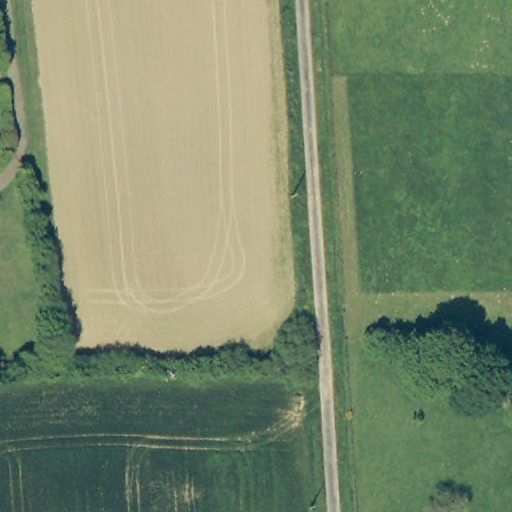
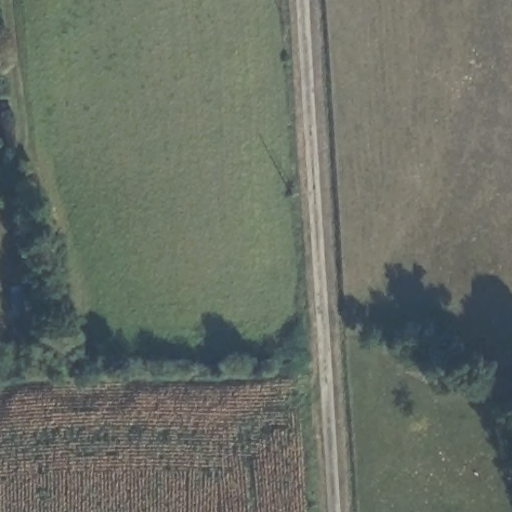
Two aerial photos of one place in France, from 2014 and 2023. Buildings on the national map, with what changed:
[]

